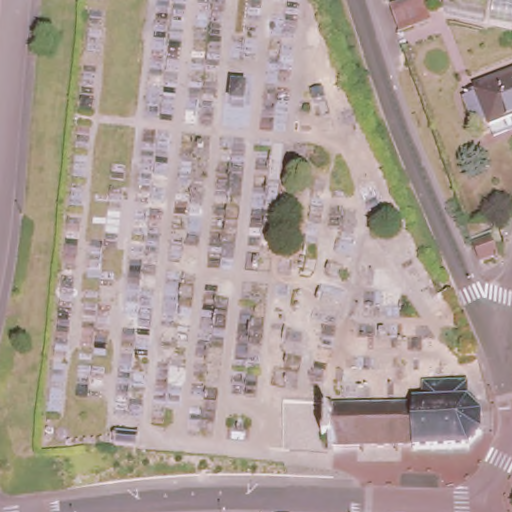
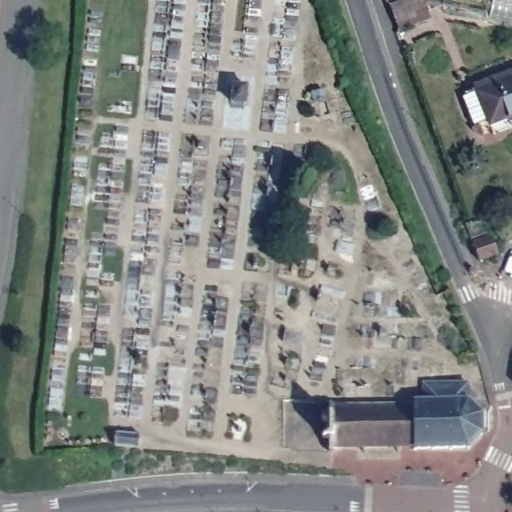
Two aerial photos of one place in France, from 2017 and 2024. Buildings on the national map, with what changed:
unchanged [(422,0),(429,18),(400,28),(391,5),(404,0),(422,0)]
unchanged [(467,97),(474,94),(472,91),(480,88),(480,91),(493,86),(491,81),(505,75),(507,81),(512,79),(512,118),(494,125),(492,121),(479,126),(467,97)]
unchanged [(487,243),(489,251),(479,255),(477,245),(487,243)]
unchanged [(413,446),(413,442),(404,442),(404,445),(397,445),(397,442),(365,442),(365,445),(361,445),(360,442),(333,442),(333,447),(329,447),(329,433),(322,432),(322,428),(329,428),(329,415),(322,415),(322,410),(329,410),(329,396),(340,396),(340,401),(346,401),(346,399),(350,399),(350,401),(362,401),(362,399),(366,399),(366,401),(380,401),(380,399),(384,399),(384,401),(397,401),(397,398),(400,398),(400,401),(412,400),(412,395),(415,394),(415,396),(423,396),(423,378),(467,377),(468,396),(480,408),(484,408),(484,412),(482,413),(482,427),(484,428),(482,436),(469,446),(413,446)]
unchanged [(140,435),(139,448),(114,445),(115,432),(140,435)]

